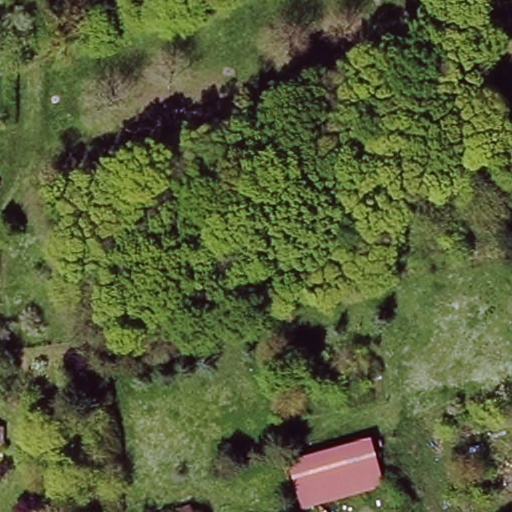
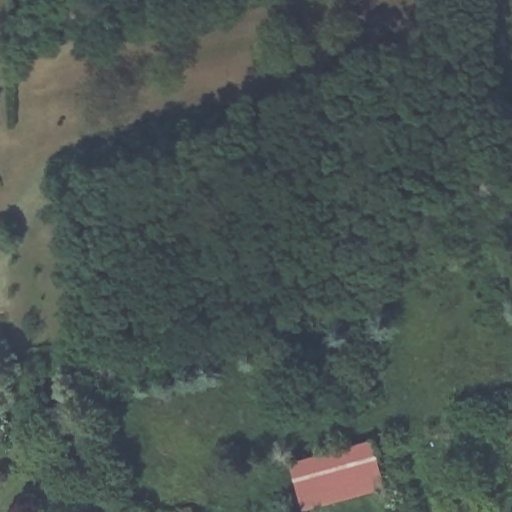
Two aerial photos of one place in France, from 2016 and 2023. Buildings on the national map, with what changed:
unchanged [(371,438),(384,484),(301,510),(289,464),(371,438)]
unchanged [(194,512),(167,512),(192,504),(194,512)]

